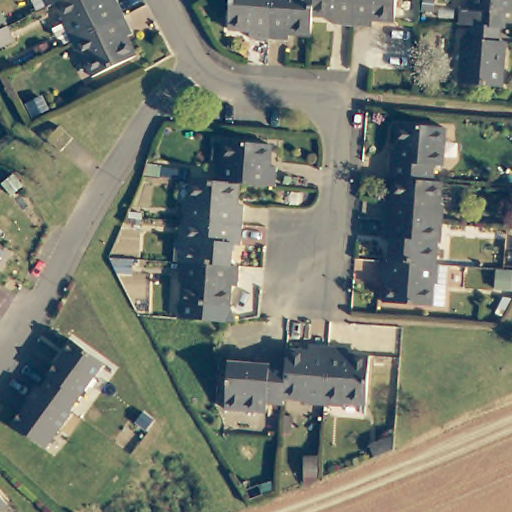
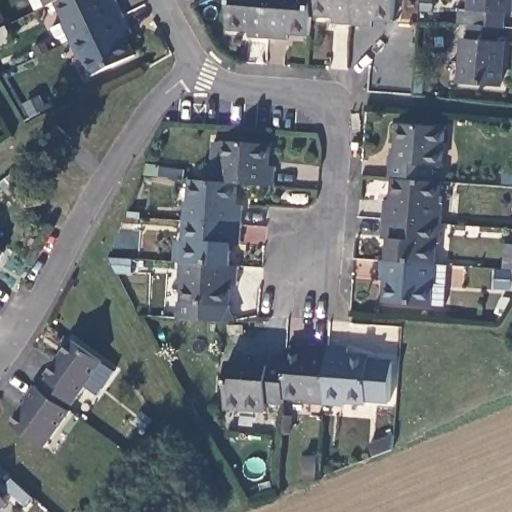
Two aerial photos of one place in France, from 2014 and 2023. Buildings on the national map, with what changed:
unchanged [(30,0),(71,0),(61,5),(48,11),(37,16),(30,0)]
unchanged [(71,0),(105,0),(111,11),(121,6),(127,22),(73,47),(65,29),(71,26),(61,5),(71,0)]
unchanged [(252,42),(254,32),(230,29),(233,0),(275,0),(272,45),(252,42)]
unchanged [(275,0),(314,0),(312,18),(311,37),(290,35),(288,47),(272,45),(275,0)]
unchanged [(353,33),(333,31),(334,20),(312,18),(314,0),(356,0),(353,33)]
unchanged [(372,24),(371,35),(353,33),(356,0),(398,0),(395,27),(372,24)]
unchanged [(507,24),(501,23),(499,39),(495,39),(465,36),(453,35),(455,18),(465,19),(466,0),(509,0),(507,24)]
unchanged [(7,16),(14,30),(0,36),(0,19),(7,16)]
unchanged [(83,68),(73,47),(127,22),(136,41),(127,45),(135,62),(96,79),(89,65),(83,68)]
unchanged [(453,92),(457,48),(464,49),(465,36),(495,39),(493,52),(498,52),(493,96),(453,92)]
unchanged [(47,132),(61,117),(75,129),(62,144),(47,132)]
unchanged [(274,157),(272,175),(233,171),(213,170),(215,149),(221,150),(224,127),(268,131),(265,156),(274,157)]
unchanged [(390,161),(395,162),(399,127),(445,131),(441,167),(434,166),(432,186),(392,183),(387,182),(390,161)]
unchanged [(231,196),(243,198),(242,214),(182,209),(184,192),(192,193),(194,168),(213,170),(233,171),(231,196)]
unchanged [(379,203),(391,204),(392,183),(432,186),(440,187),(438,206),(442,206),(440,228),(377,222),(379,203)]
unchanged [(188,227),(181,226),(182,209),(242,214),(240,232),(228,231),(226,254),(186,250),(188,227)]
unchanged [(438,246),(432,245),(430,268),(384,264),(386,241),(375,239),(377,222),(440,228),(438,246)]
unchanged [(222,312),(171,305),(172,292),(179,292),(180,268),(172,267),(173,249),(186,250),(226,254),(235,255),(234,271),(221,271),(219,292),(225,292),(229,310),(222,312)]
unchanged [(438,311),(424,309),(381,305),(382,287),(372,286),(375,263),(384,264),(430,268),(435,269),(442,269),(438,311)]
unchanged [(59,379),(57,377),(82,342),(113,365),(78,412),(50,390),(59,379)]
unchanged [(286,363),(287,353),(310,355),(311,345),(328,346),(323,407),(305,405),(306,399),(282,396),(286,363)]
unchanged [(328,346),(349,349),(348,359),(370,361),(365,405),(342,402),(342,409),(323,407),(328,346)]
unchanged [(261,405),(261,410),(225,407),(228,364),(270,368),(271,362),(286,363),(282,396),(282,406),(261,405)]
unchanged [(37,403),(36,402),(46,388),(50,390),(78,412),(80,413),(53,449),(21,425),(37,403)]
unchanged [(0,512),(0,489),(16,507),(10,512),(0,512)]

